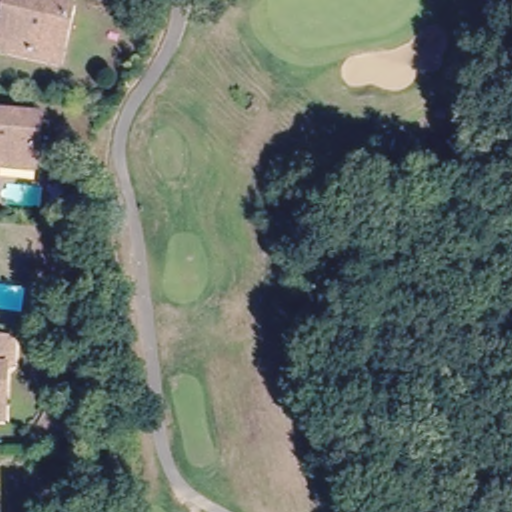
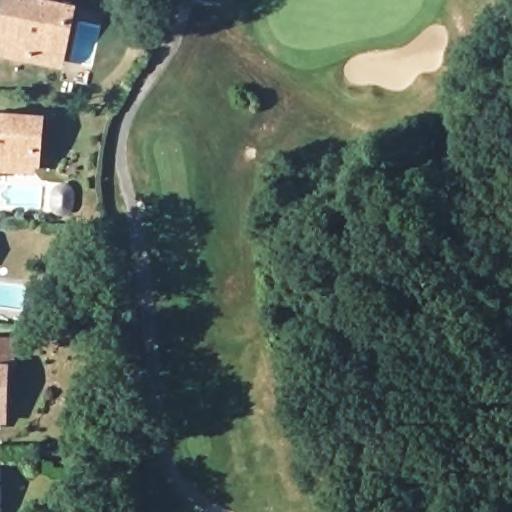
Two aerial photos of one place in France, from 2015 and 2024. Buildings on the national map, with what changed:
unchanged [(2,46),(6,28),(12,0),(57,0),(57,1),(73,5),(65,41),(61,59),(45,56),(20,50),(2,46)]
unchanged [(46,120),(50,120),(48,153),(44,153),(44,167),(4,164),(3,180),(0,180),(0,118),(46,120)]
unchanged [(0,414),(0,333),(18,333),(16,361),(9,361),(8,397),(7,414),(0,414)]

